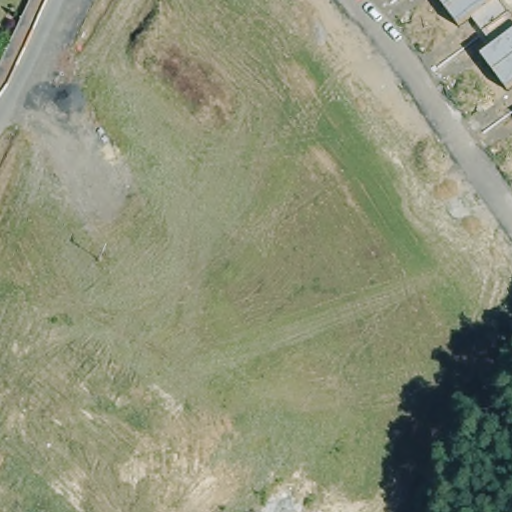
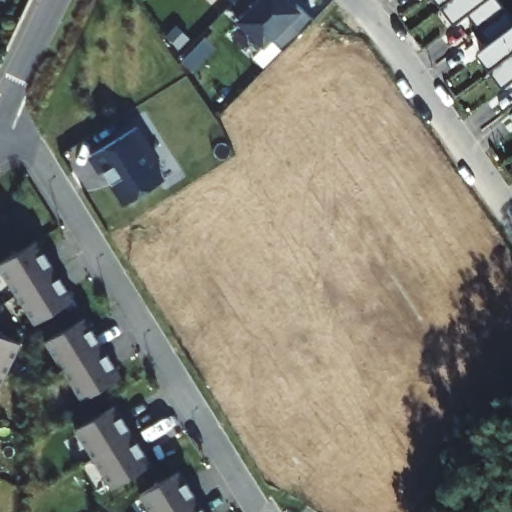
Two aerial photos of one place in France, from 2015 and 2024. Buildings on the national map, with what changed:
new [(234,2),(232,0),(236,0),(234,2)]
new [(260,0),(269,0),(288,19),(292,16),(305,29),(283,51),(271,39),(265,45),(240,21),(260,0)]
unchanged [(512,17),(512,84),(507,89),(480,56),(491,47),(490,42),(472,17),(470,16),(458,25),(439,0),(499,0),(512,17)]
new [(288,19),(278,9),(282,6),(292,16),(288,19)]
new [(158,160),(153,163),(164,180),(126,204),(105,170),(102,172),(91,155),(137,126),(158,160)]
new [(75,298),(35,323),(0,268),(0,263),(38,238),(75,298)]
new [(123,373),(82,400),(45,341),(85,316),(123,373)]
new [(20,343),(0,388),(0,333),(20,343)]
new [(117,402),(152,462),(112,486),(77,427),(117,402)]
new [(152,512),(140,492),(180,468),(207,512),(152,512)]

